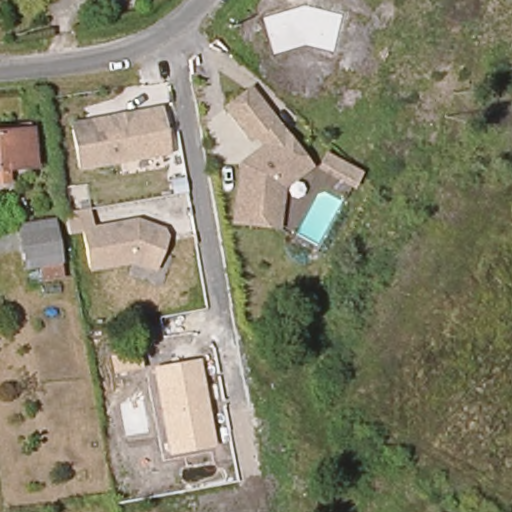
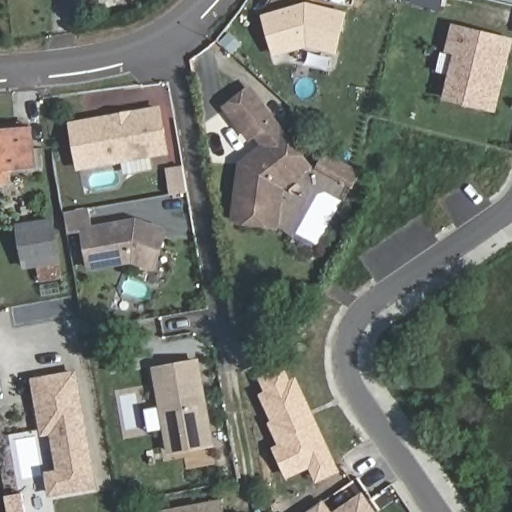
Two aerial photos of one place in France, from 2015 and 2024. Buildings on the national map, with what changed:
new [(410,4),(411,0),(443,0),(440,11),(410,4)]
new [(336,55),(308,47),(274,57),(261,15),(308,2),(347,12),(336,55)]
new [(457,54),(448,52),(454,28),(510,42),(505,64),(500,63),(493,88),(499,89),(493,111),(446,99),(457,54)]
unchanged [(273,116),(250,135),(226,105),(248,86),(273,116)]
unchanged [(126,167),(124,153),(78,161),(70,118),(159,103),(166,146),(169,160),(126,167)]
unchanged [(24,177),(0,180),(0,130),(15,128),(34,126),(35,135),(36,162),(22,163),(24,177)]
unchanged [(280,181),(275,220),(234,215),(240,163),(283,127),(310,160),(280,181)]
new [(315,169),(322,157),(330,162),(333,156),(362,172),(352,190),(315,169)]
unchanged [(66,236),(63,212),(90,207),(93,225),(137,219),(171,232),(153,273),(130,267),(85,270),(80,233),(66,236)]
unchanged [(56,224),(62,261),(31,266),(27,229),(56,224)]
new [(127,351),(130,369),(102,374),(99,357),(127,351)]
unchanged [(165,455),(150,366),(199,356),(214,447),(165,455)]
new [(286,480),(272,448),(277,446),(267,423),(270,422),(258,395),(265,391),(258,378),(283,368),(290,379),(295,377),(340,472),(315,484),(308,469),(286,480)]
new [(75,371),(95,489),(50,497),(45,474),(56,472),(50,436),(41,438),(33,379),(75,371)]
new [(361,493),(376,512),(311,512),(327,500),(335,509),(361,493)]
demolished [(91,498),(94,512),(80,512),(79,500),(91,498)]
new [(202,506),(222,503),(224,512),(174,512),(202,506)]

